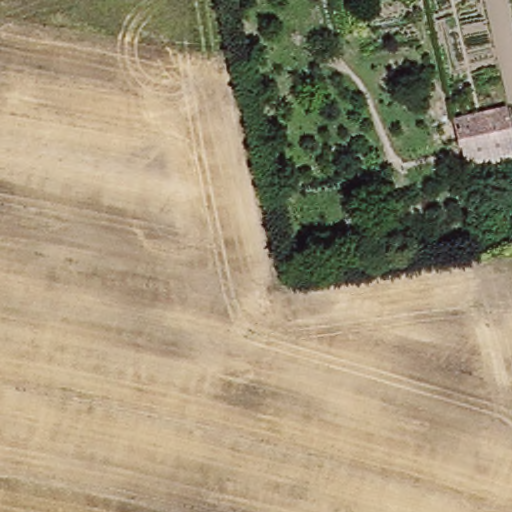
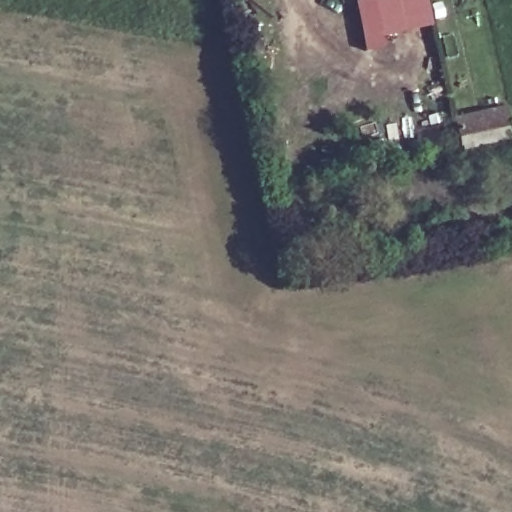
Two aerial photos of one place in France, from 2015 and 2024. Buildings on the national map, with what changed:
new [(429,0),(434,25),(382,37),(384,46),(364,50),(353,0),(356,0),(429,0)]
unchanged [(512,136),(512,144),(463,153),(456,121),(507,111),(512,136)]

